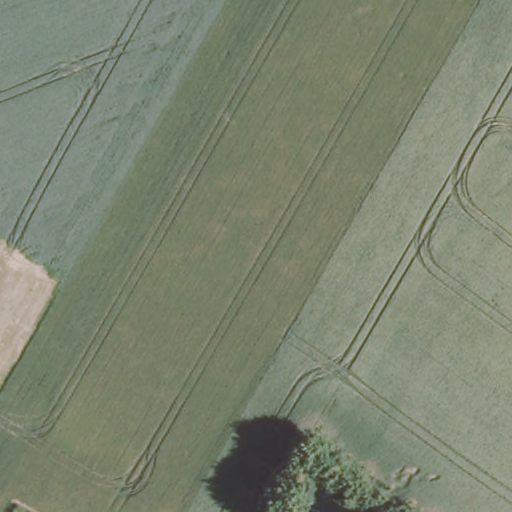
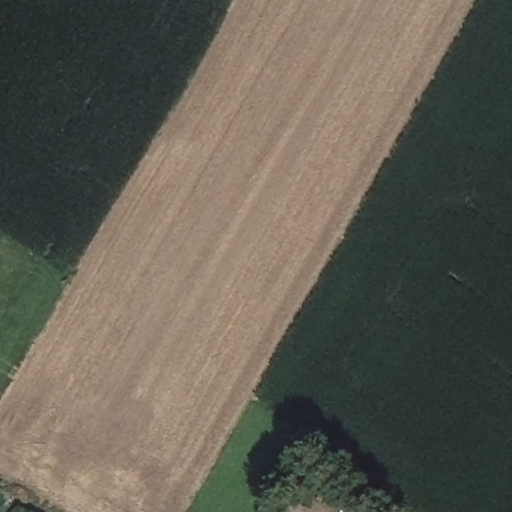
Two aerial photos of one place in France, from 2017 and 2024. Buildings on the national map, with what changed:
[]

